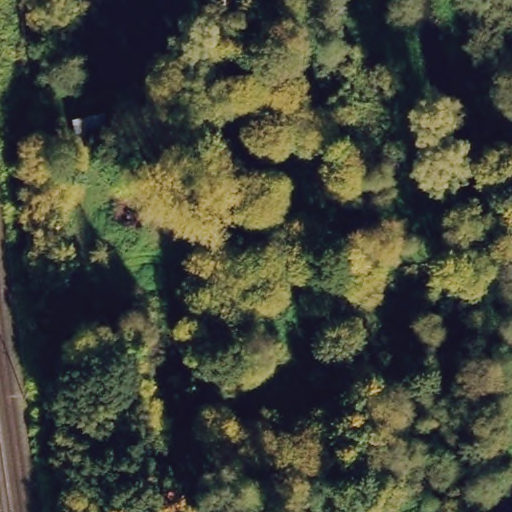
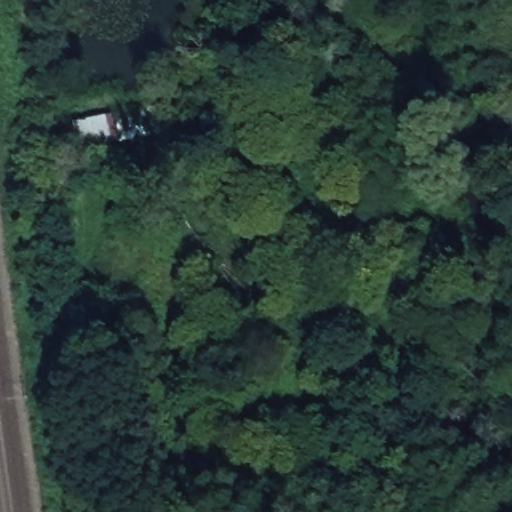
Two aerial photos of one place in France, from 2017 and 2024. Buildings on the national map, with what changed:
unchanged [(116,108),(120,140),(80,148),(72,118),(116,108)]

